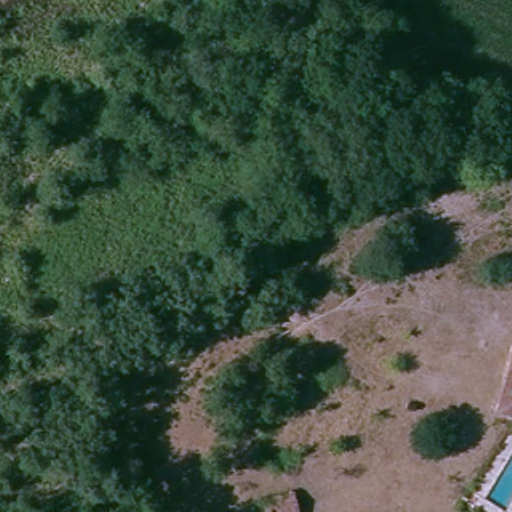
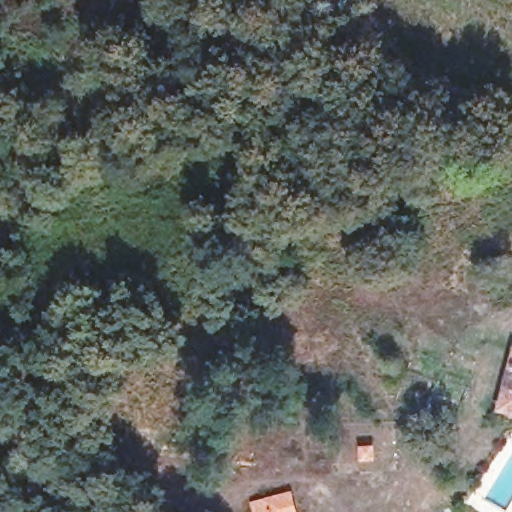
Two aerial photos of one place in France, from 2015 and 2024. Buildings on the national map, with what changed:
new [(292,490),(298,512),(253,512),(250,502),(292,490)]
demolished [(299,493),(307,512),(267,512),(264,504),(299,493)]

